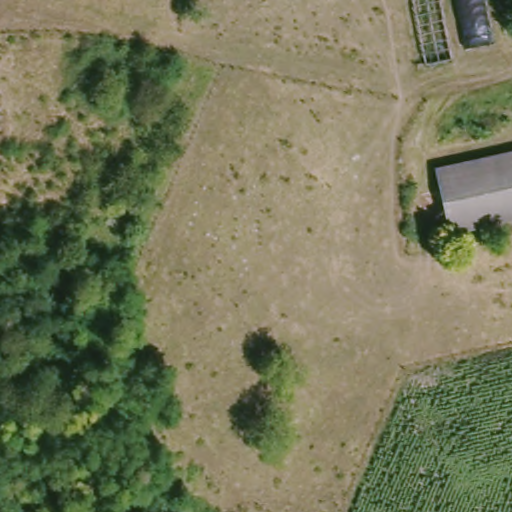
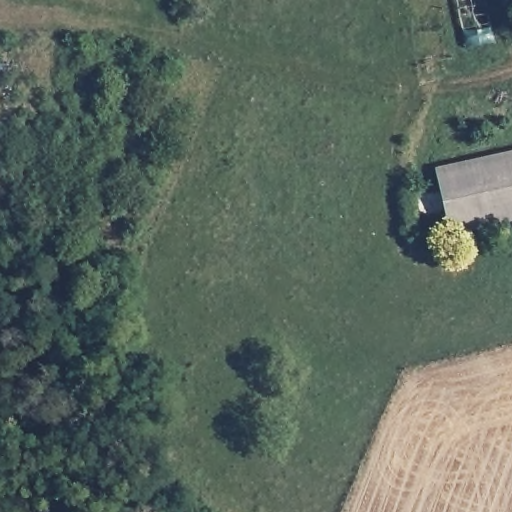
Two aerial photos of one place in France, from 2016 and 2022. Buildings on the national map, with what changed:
unchanged [(412,0),(441,0),(452,57),(425,63),(412,0)]
unchanged [(466,48),(456,0),(485,0),(493,43),(466,48)]
unchanged [(512,221),(455,233),(441,171),(512,155),(512,221)]

